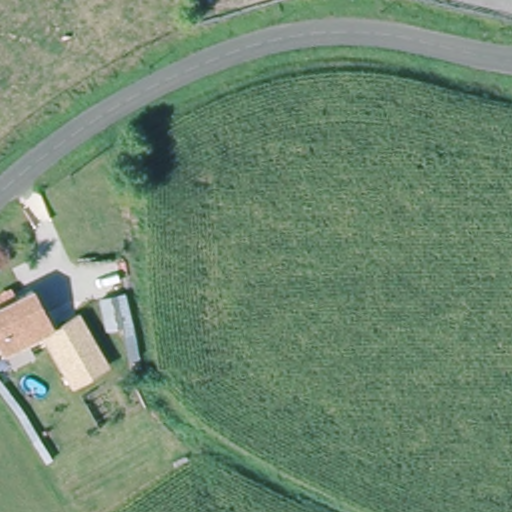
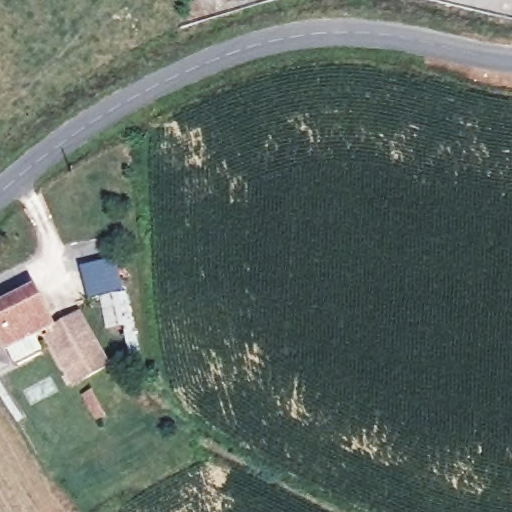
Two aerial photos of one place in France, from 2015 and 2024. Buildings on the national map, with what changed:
unchanged [(37,282),(54,327),(0,353),(0,341),(4,339),(0,330),(0,299),(37,282)]
unchanged [(111,362),(74,385),(46,337),(57,330),(83,314),(111,362)]

